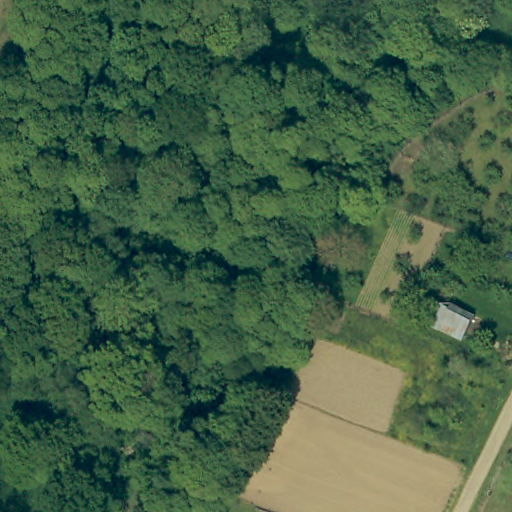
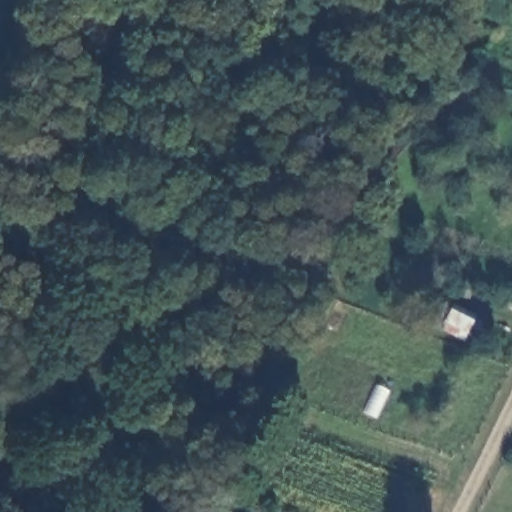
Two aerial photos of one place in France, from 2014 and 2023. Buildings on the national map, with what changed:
unchanged [(478,315),(469,337),(428,321),(438,301),(478,315)]

